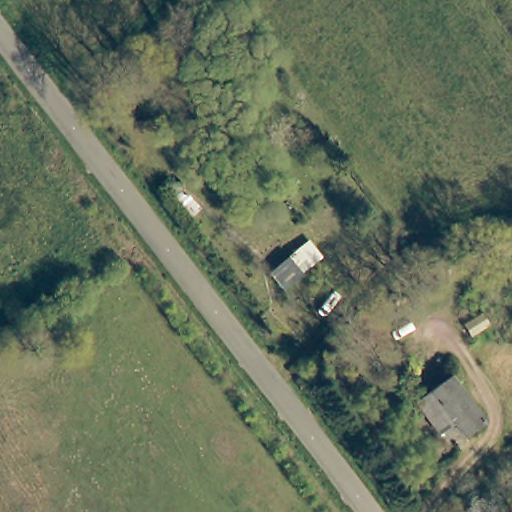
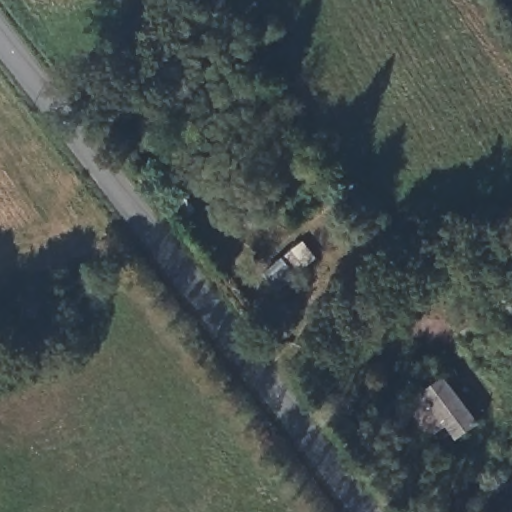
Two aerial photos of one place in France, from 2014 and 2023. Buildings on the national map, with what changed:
unchanged [(512,241),(512,255),(496,258),(494,244),(512,241)]
unchanged [(267,274),(293,251),(306,265),(295,275),(297,277),(281,291),(267,274)]
unchanged [(419,286),(414,267),(440,261),(444,281),(419,286)]
unchanged [(434,434),(411,404),(448,377),(482,423),(462,437),(450,421),(434,434)]

